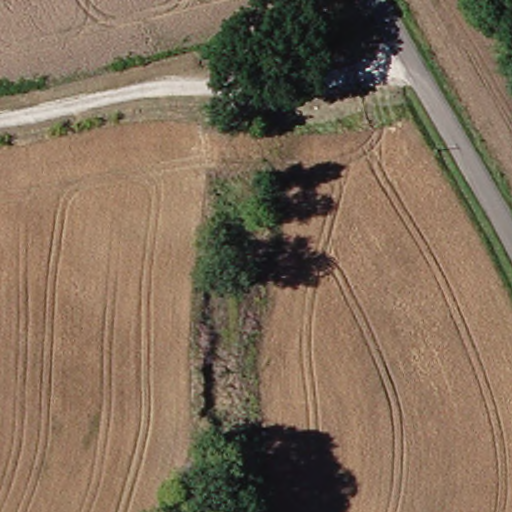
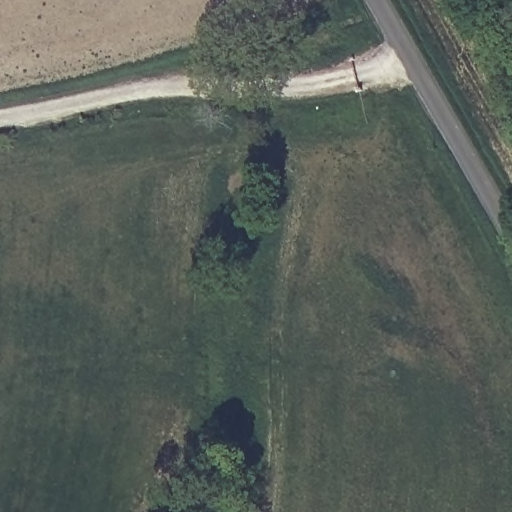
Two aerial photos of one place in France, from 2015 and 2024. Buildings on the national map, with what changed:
[]

